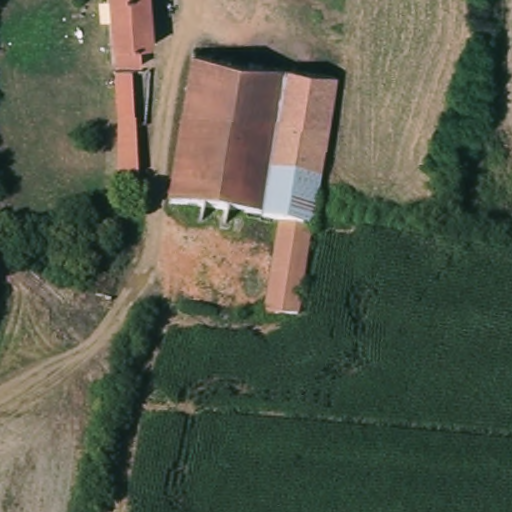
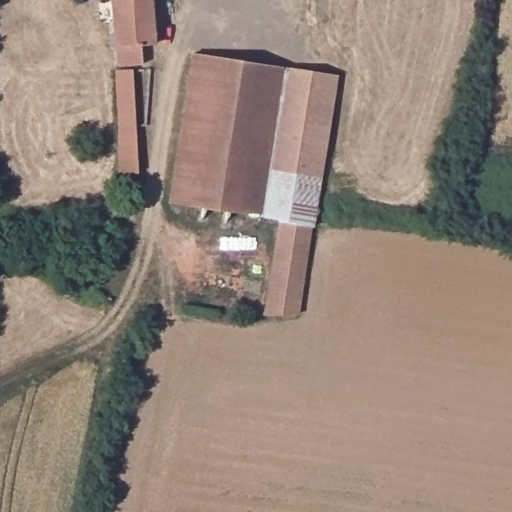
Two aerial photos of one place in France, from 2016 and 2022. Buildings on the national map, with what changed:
unchanged [(141,61),(142,71),(116,74),(110,0),(148,0),(154,59),(141,61)]
unchanged [(271,298),(267,298),(267,294),(281,203),(180,189),(198,61),(330,81),(315,206),(313,219),(300,302),(271,298)]
unchanged [(136,80),(144,192),(123,193),(116,81),(136,80)]

